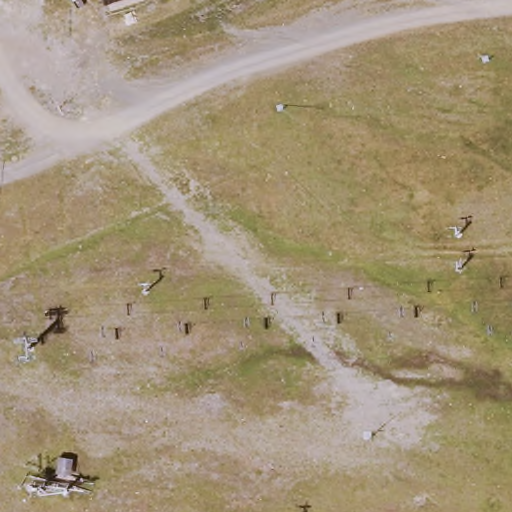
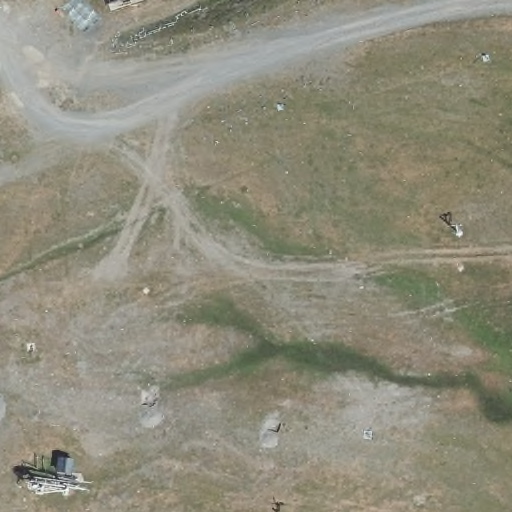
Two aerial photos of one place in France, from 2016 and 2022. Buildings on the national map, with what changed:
unchanged [(103,0),(117,0),(104,4),(103,0)]

